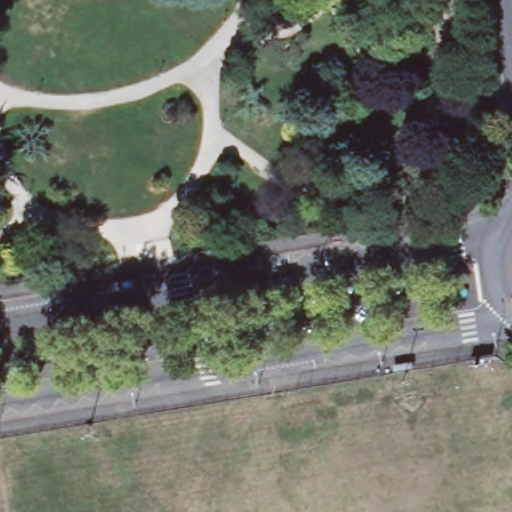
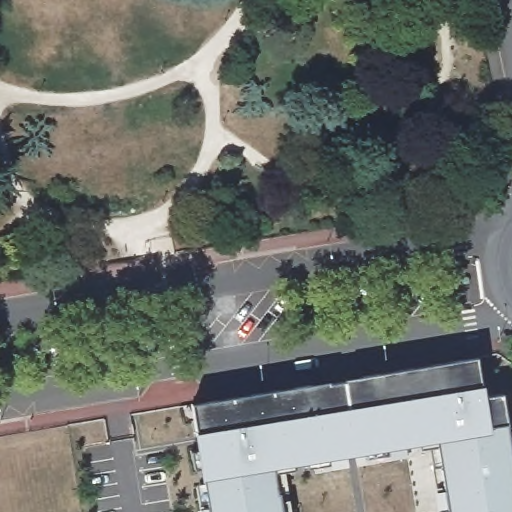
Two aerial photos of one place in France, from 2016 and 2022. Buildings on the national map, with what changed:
new [(192,406),(478,359),(483,387),(485,397),(501,396),(506,424),(512,458),(512,512),(450,512),(438,442),(271,469),(279,512),(207,512),(202,481),(192,406)]

